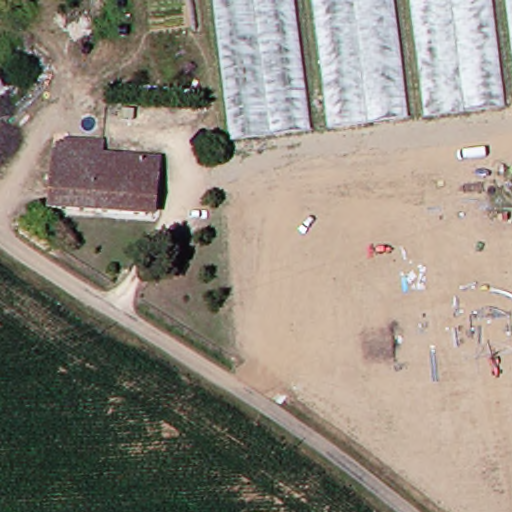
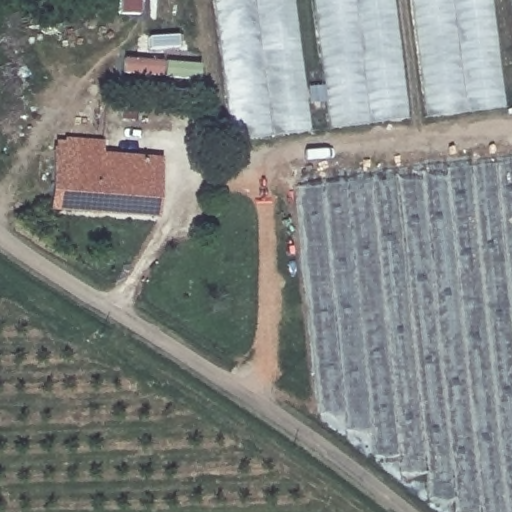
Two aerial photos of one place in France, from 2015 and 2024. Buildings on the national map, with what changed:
new [(512,105),(232,140),(215,0),(512,0),(512,105)]
unchanged [(156,215),(54,205),(56,151),(111,155),(112,162),(164,167),(156,215)]
new [(297,173),(368,165),(370,172),(512,159),(512,512),(471,512),(322,417),(297,173)]

